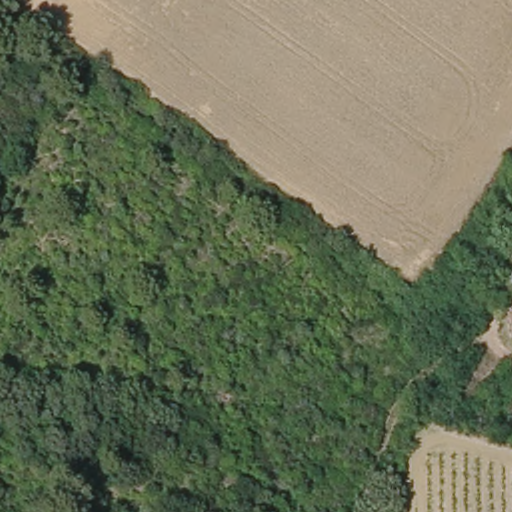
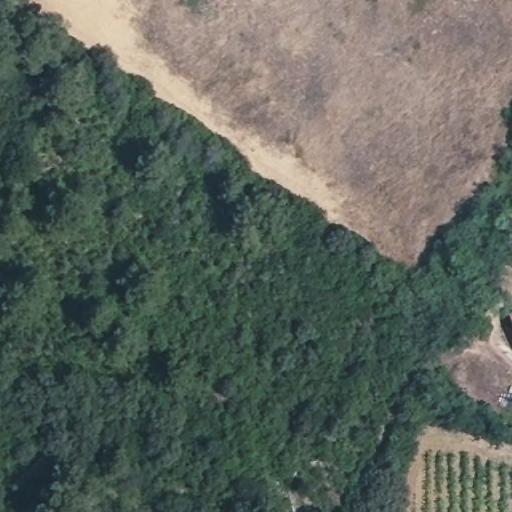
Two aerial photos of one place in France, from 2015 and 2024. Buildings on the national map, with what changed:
unchanged [(509,215),(512,205),(512,215),(509,215)]

